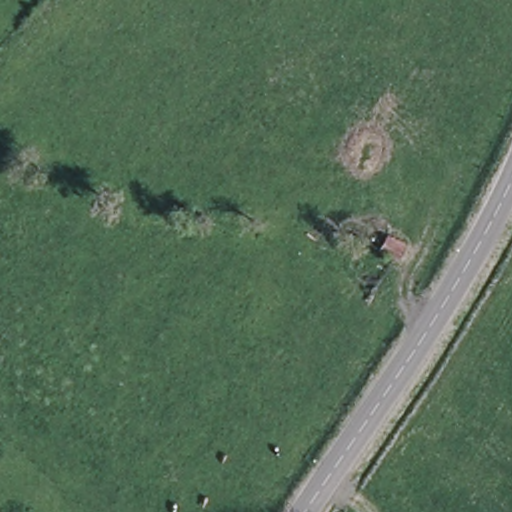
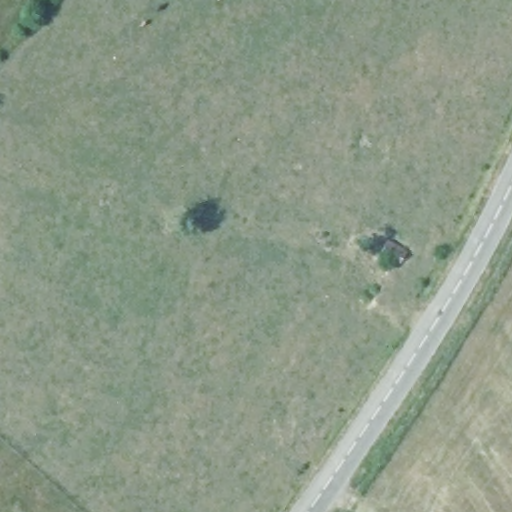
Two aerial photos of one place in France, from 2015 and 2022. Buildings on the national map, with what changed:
unchanged [(412,250),(403,263),(384,250),(392,237),(412,250)]

